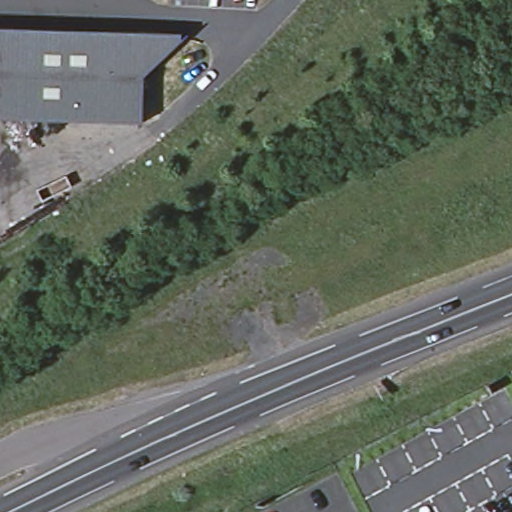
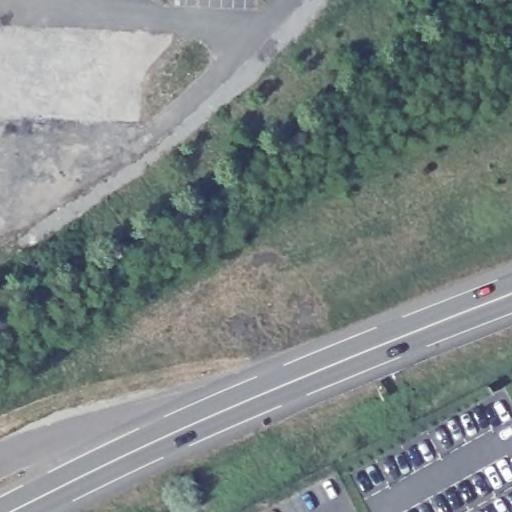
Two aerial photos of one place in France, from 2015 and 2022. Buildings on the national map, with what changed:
demolished [(141,80),(140,128),(0,123),(0,31),(166,36),(176,48),(141,80)]

